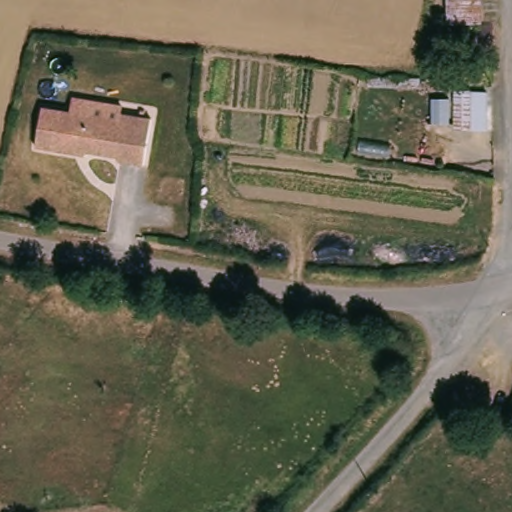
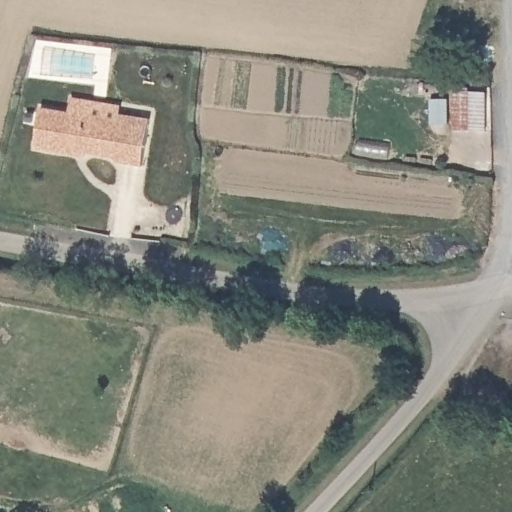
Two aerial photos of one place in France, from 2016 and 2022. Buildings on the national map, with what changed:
unchanged [(455,127),(454,89),(489,90),(490,131),(455,127)]
unchanged [(120,162),(117,157),(88,152),(86,157),(36,147),(44,107),(93,116),(91,122),(120,127),(122,115),(153,120),(145,167),(120,162)]

